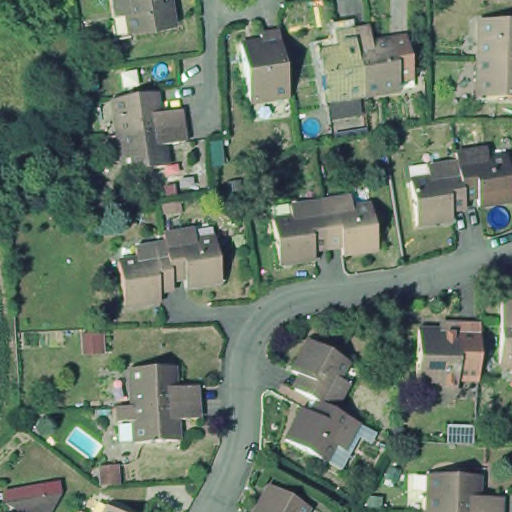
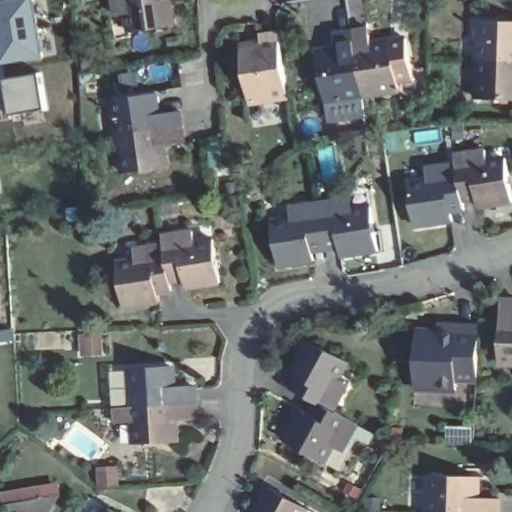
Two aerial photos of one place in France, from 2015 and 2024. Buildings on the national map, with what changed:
new [(43,58),(1,65),(0,59),(0,0),(34,0),(43,58)]
unchanged [(173,25),(131,30),(128,14),(115,15),(114,0),(170,0),(173,25)]
unchanged [(512,22),(512,61),(477,59),(479,20),(512,22)]
unchanged [(377,40),(396,37),(412,35),(417,71),(402,74),(404,84),(368,90),(359,27),(374,25),(377,40)]
unchanged [(368,90),(331,96),(323,48),(340,46),(338,30),(359,27),(368,90)]
unchanged [(283,95),(241,101),(233,43),(254,40),(253,33),(274,31),(283,95)]
unchanged [(477,59),(512,61),(512,99),(476,97),(477,59)]
new [(41,71),(48,109),(9,115),(3,78),(41,71)]
unchanged [(433,91),(415,93),(414,83),(431,80),(433,91)]
unchanged [(182,126),(115,136),(110,101),(153,94),(156,114),(179,111),(182,126)]
unchanged [(184,142),(161,145),(163,166),(120,173),(115,136),(182,126),(184,142)]
unchanged [(484,144),(486,156),(504,153),(510,195),(476,201),(474,190),(461,193),(456,159),(454,148),(484,144)]
unchanged [(461,193),(463,205),(448,207),(449,216),(414,221),(407,178),(424,175),(424,164),(456,159),(461,193)]
unchanged [(346,197),(348,210),(366,207),(373,249),(338,255),(336,245),(321,248),(314,202),(346,197)]
unchanged [(321,248),(308,249),(309,259),(273,265),(267,223),(284,220),(282,206),(314,202),(321,248)]
unchanged [(197,234),(199,247),(219,244),(223,286),(191,291),(188,282),(175,283),(169,249),(168,237),(197,234)]
unchanged [(175,283),(176,294),(161,296),(163,305),(128,310),(122,267),(139,265),(138,253),(169,249),(175,283)]
unchanged [(512,360),(497,359),(499,294),(512,294),(512,360)]
unchanged [(454,380),(454,391),(413,390),(416,332),(437,333),(438,327),(456,327),(454,380)]
unchanged [(475,328),(474,381),(454,380),(456,327),(475,328)]
new [(102,330),(103,355),(79,356),(78,331),(102,330)]
unchanged [(311,403),(286,389),(291,377),(286,373),(304,342),(340,362),(331,379),(341,385),(327,411),(311,403)]
unchanged [(174,423),(176,447),(133,450),(133,426),(118,427),(117,411),(131,410),(129,373),(171,371),(173,393),(196,391),(197,407),(198,422),(174,423)]
unchanged [(327,411),(353,425),(337,451),(326,445),(316,462),(280,443),(297,411),(304,415),(311,403),(327,411)]
unchanged [(483,475),(482,496),(504,496),(504,512),(432,512),(433,474),(483,475)]
unchanged [(14,512),(3,506),(3,492),(60,481),(61,496),(52,512),(14,512)]
unchanged [(300,508),(298,512),(249,512),(264,486),(300,508)]

